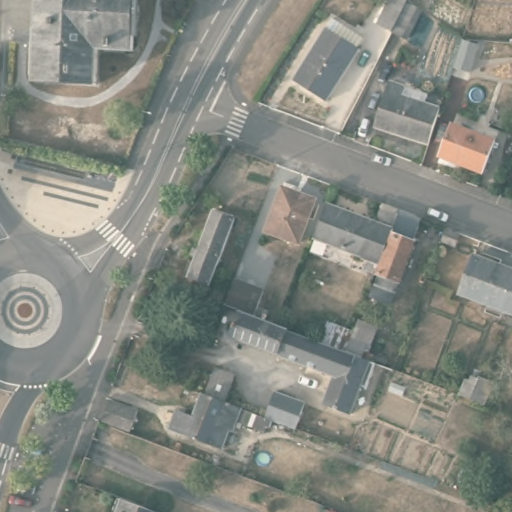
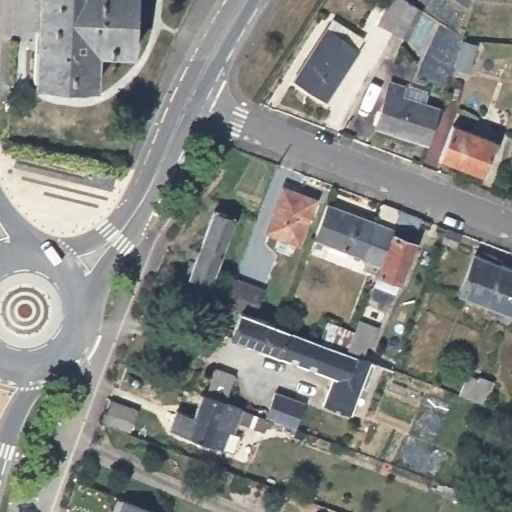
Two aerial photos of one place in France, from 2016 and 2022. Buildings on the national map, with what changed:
unchanged [(132,47),(96,47),(94,80),(36,79),(40,0),(134,0),(132,47)]
unchanged [(378,18),(385,5),(388,0),(407,0),(409,2),(423,10),(409,39),(394,32),(396,27),(378,18)]
unchanged [(363,33),(358,42),(360,43),(324,96),(292,75),(334,13),(363,33)]
unchanged [(461,35),(477,39),(467,68),(451,64),(461,35)]
unchanged [(373,123),(389,76),(426,89),(423,99),(438,103),(426,140),(373,123)]
unchanged [(496,137),(484,168),(442,152),(455,121),(496,137)]
unchanged [(313,195),(295,240),(264,227),(281,183),(313,195)]
unchanged [(191,265),(197,251),(202,252),(222,201),(242,209),(213,287),(192,279),(196,268),(191,265)]
unchanged [(377,228),(385,209),(402,216),(393,239),(375,289),(363,284),(370,263),(316,243),(329,210),(377,228)]
unchanged [(423,224),(414,246),(417,247),(398,297),(379,289),(397,241),(393,239),(402,216),(423,224)]
unchanged [(457,228),(452,242),(438,236),(444,223),(457,228)]
unchanged [(512,268),(512,313),(489,304),(461,294),(476,255),(512,268)]
unchanged [(283,327),(321,342),(329,321),(356,332),(362,319),(381,327),(374,344),(370,343),(363,359),(367,360),(370,355),(374,356),(372,362),(379,365),(371,387),(364,385),(353,414),(326,404),(340,371),(336,369),(333,374),(234,337),(243,312),(225,306),(235,279),(264,290),(254,316),(270,322),(276,324),(283,327)]
unchanged [(278,319),(276,324),(271,321),(273,316),(278,319)]
unchanged [(212,366),(230,373),(222,397),(262,413),(272,387),(302,399),(292,424),(272,416),(269,422),(264,421),(263,425),(236,415),(232,426),(238,428),(229,449),(182,432),(200,389),(202,390),(212,366)]
unchanged [(462,375),(466,376),(467,371),(475,374),(476,370),(490,375),(481,399),(455,390),(462,375)]
unchanged [(107,395),(137,407),(129,428),(99,416),(107,395)]
unchanged [(119,512),(124,498),(161,512),(119,512)]

